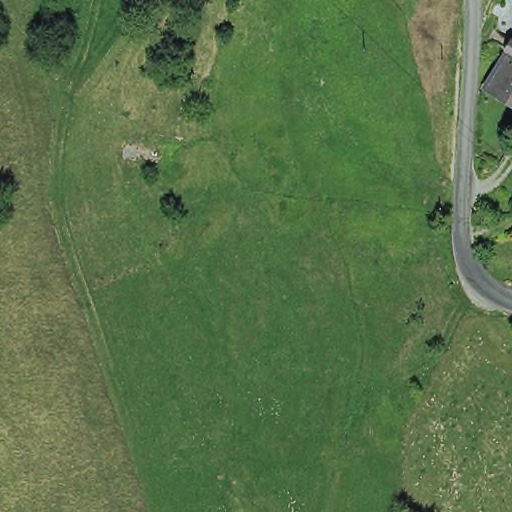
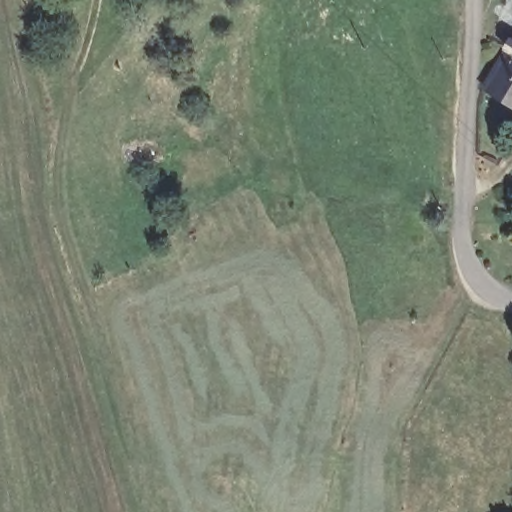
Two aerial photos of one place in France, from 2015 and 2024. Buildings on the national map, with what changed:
unchanged [(512,7),(512,39),(497,29),(512,7)]
unchanged [(512,52),(512,64),(507,61),(512,52)]
unchanged [(507,61),(512,64),(512,110),(485,92),(507,61)]

